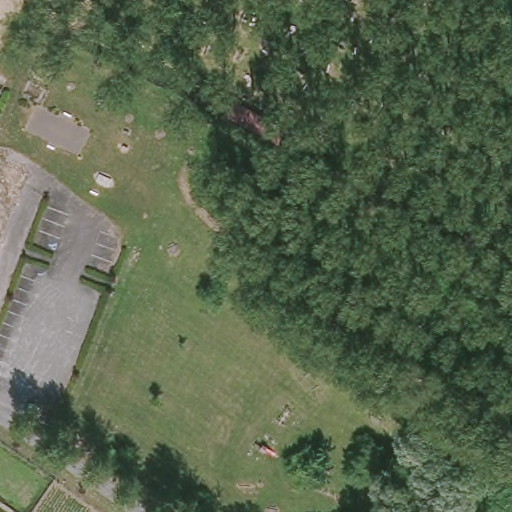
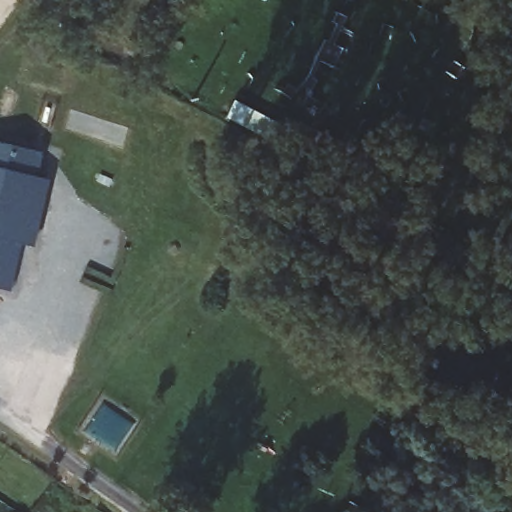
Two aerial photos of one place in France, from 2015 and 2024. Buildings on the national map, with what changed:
new [(0,144),(42,152),(39,178),(48,180),(32,245),(22,243),(10,292),(0,289),(0,144)]
demolished [(6,157),(30,165),(0,246),(0,145),(10,149),(6,157)]

